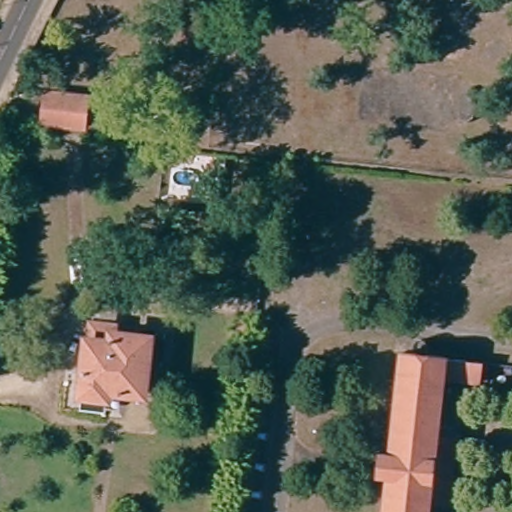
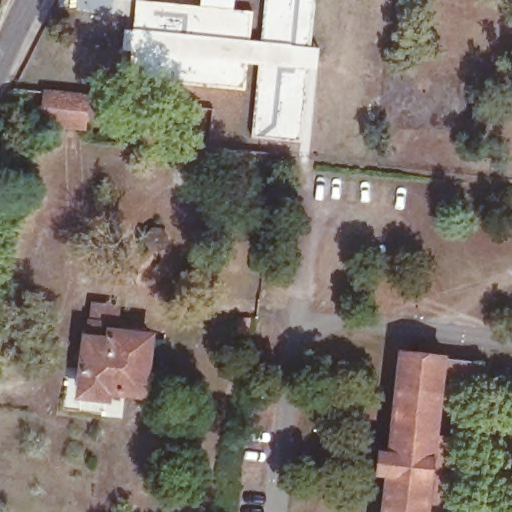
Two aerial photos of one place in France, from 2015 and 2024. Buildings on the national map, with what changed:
new [(319,49),(318,69),(308,68),(300,143),(253,138),(260,64),(248,63),(244,92),(120,76),(124,28),(135,29),(138,1),(254,12),(251,40),(263,41),(267,0),(317,0),(313,48),(319,49)]
demolished [(222,44),(197,41),(199,25),(223,28),(222,44)]
unchanged [(89,100),(85,131),(45,126),(49,96),(89,100)]
unchanged [(118,329),(117,335),(153,341),(145,396),(110,392),(109,401),(81,397),(89,343),(94,343),(95,327),(118,329)]
unchanged [(398,463),(386,462),(388,441),(400,443),(411,341),(491,350),(488,369),(451,364),(442,435),(463,438),(458,485),(437,483),(434,512),(392,512),(398,463)]

